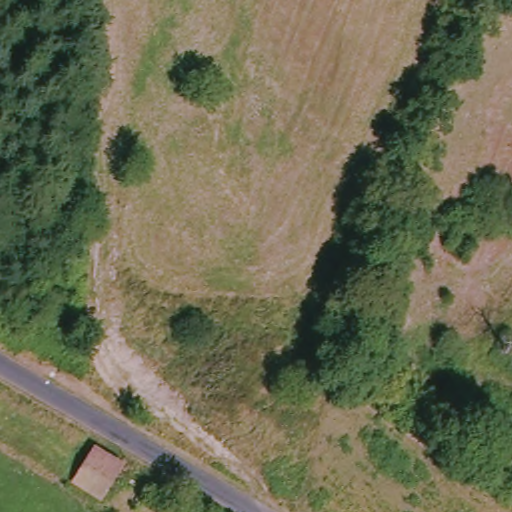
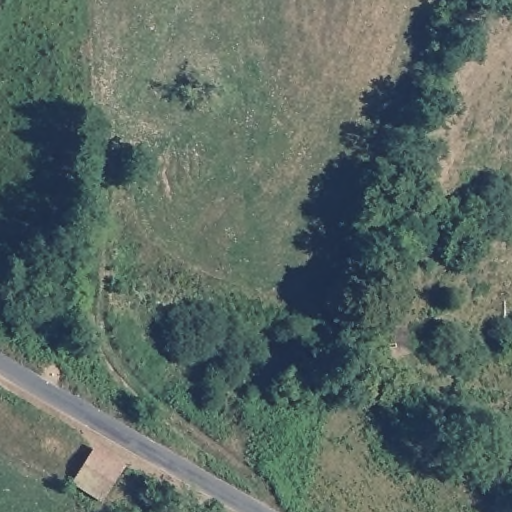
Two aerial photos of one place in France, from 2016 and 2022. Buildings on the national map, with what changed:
unchanged [(68,478),(89,445),(124,465),(105,497),(68,478)]

